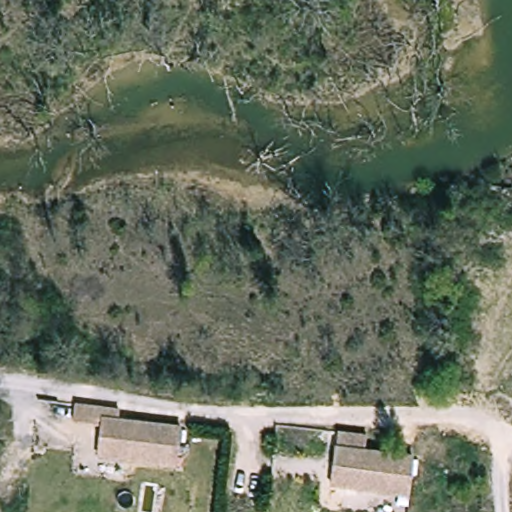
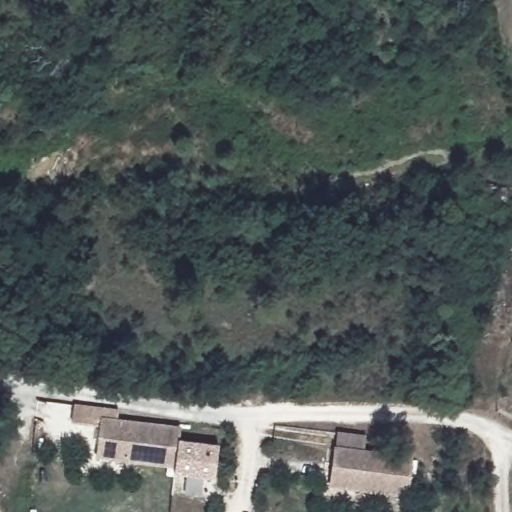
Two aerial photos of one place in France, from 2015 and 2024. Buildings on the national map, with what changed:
unchanged [(175,471),(96,457),(100,423),(71,421),(73,404),(118,408),(118,418),(181,427),(175,471)]
unchanged [(344,429),(372,432),(371,448),(417,457),(410,498),(335,486),(342,445),(344,429)]
new [(175,477),(175,471),(179,441),(219,445),(214,480),(175,477)]

